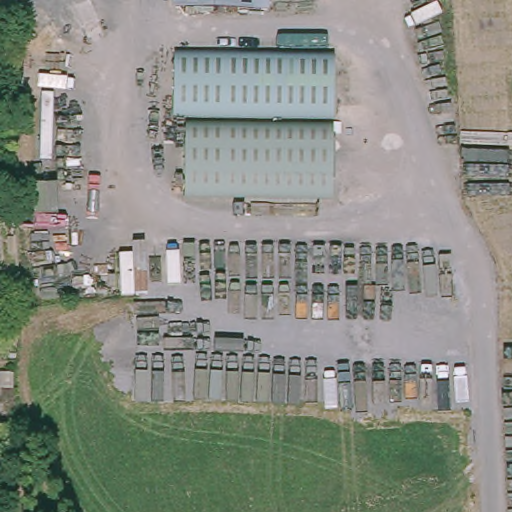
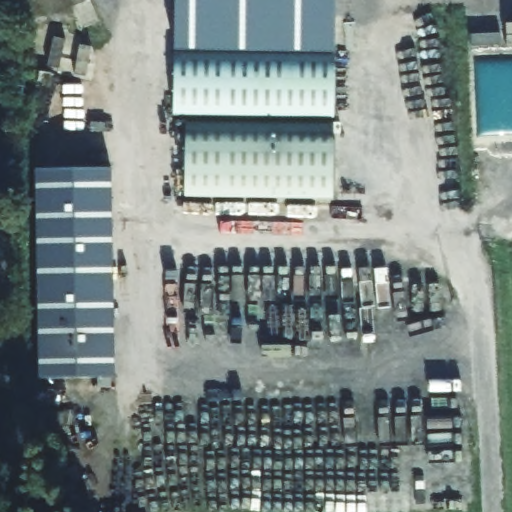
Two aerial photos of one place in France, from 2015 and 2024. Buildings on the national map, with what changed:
unchanged [(268,9),(175,7),(175,0),(268,0),(268,9)]
new [(175,7),(268,9),(268,0),(336,0),(335,57),(175,55),(175,7)]
unchanged [(332,189),(172,187),(175,55),(335,57),(332,189)]
new [(111,167),(115,377),(40,378),(36,168),(111,167)]

